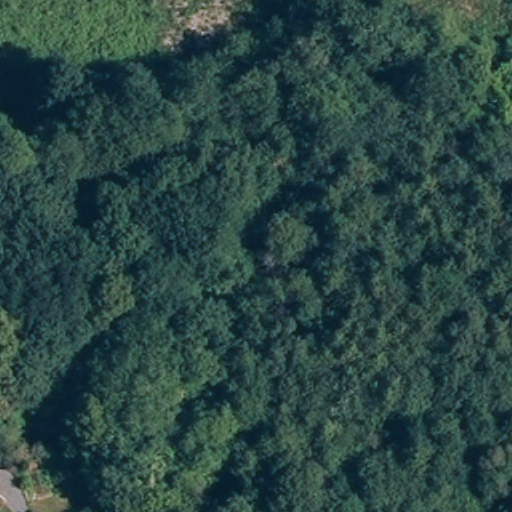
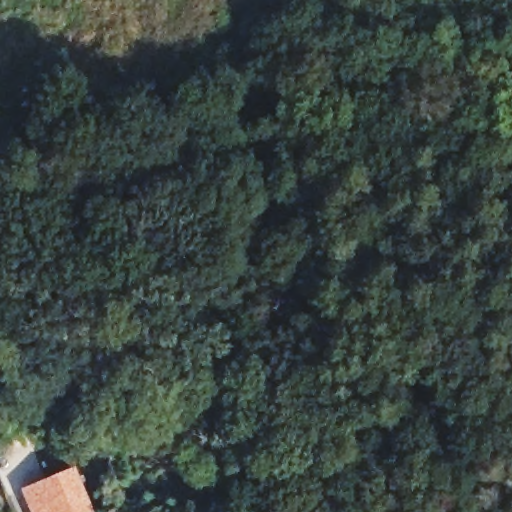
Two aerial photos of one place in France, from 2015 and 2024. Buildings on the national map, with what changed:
unchanged [(52,436),(47,422),(70,415),(74,428),(52,436)]
new [(29,497),(48,490),(45,484),(75,471),(92,512),(36,512),(29,497)]

